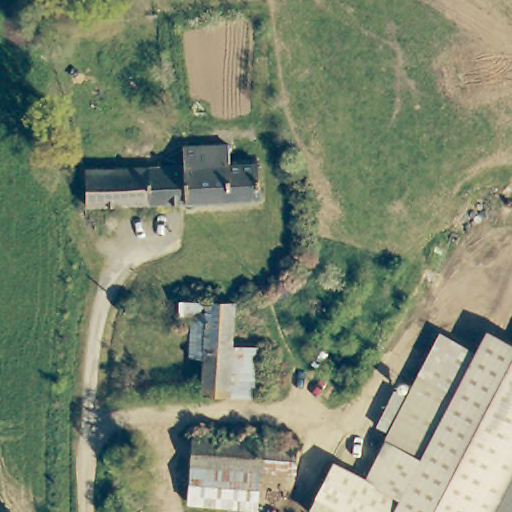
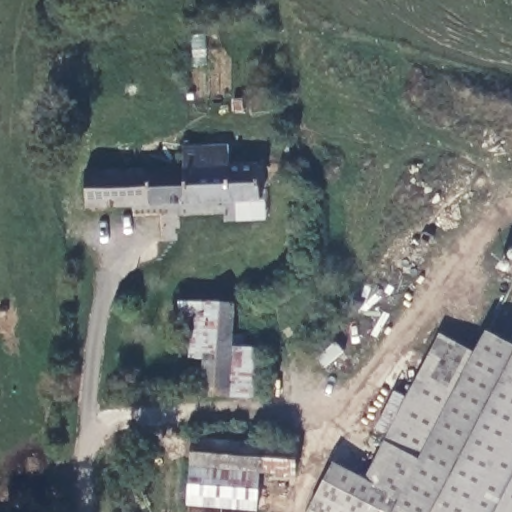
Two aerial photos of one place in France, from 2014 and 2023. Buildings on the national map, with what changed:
unchanged [(86,205),(87,169),(181,166),(181,146),(229,144),(229,141),(257,140),(257,163),(268,162),(268,179),(258,179),(258,200),(86,205)]
unchanged [(201,354),(191,354),(192,314),(182,314),(183,300),(236,302),(233,343),(231,392),(202,392),(201,354)]
unchanged [(384,438),(454,309),(491,329),(420,458),(384,438)]
unchanged [(335,459),(364,475),(384,438),(420,458),(491,329),(512,341),(512,430),(469,512),(318,512),(309,507),(335,459)]
unchanged [(265,345),(262,394),(231,392),(233,343),(265,345)]
unchanged [(469,512),(512,430),(512,512),(469,512)]
unchanged [(299,444),(296,473),(261,470),(258,508),(187,502),(190,464),(194,437),(299,444)]

